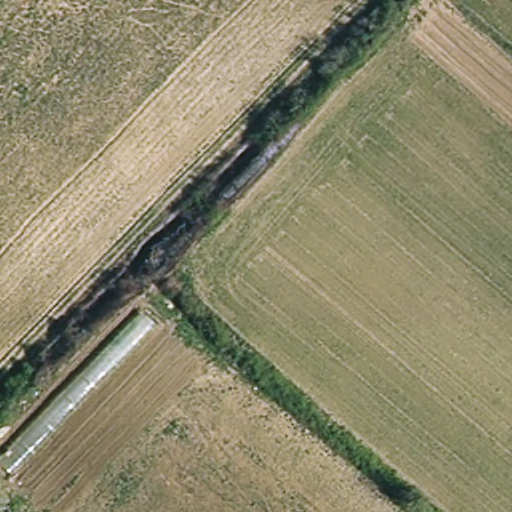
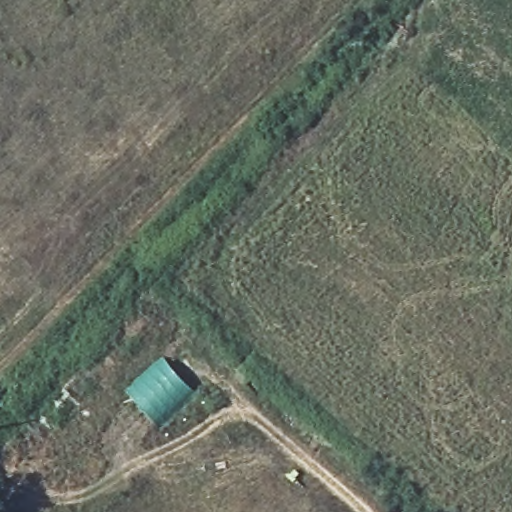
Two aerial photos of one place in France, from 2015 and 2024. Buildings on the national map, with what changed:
unchanged [(142,305),(159,322),(12,476),(0,464),(0,456),(142,305)]
new [(163,360),(198,395),(163,432),(128,395),(163,360)]

